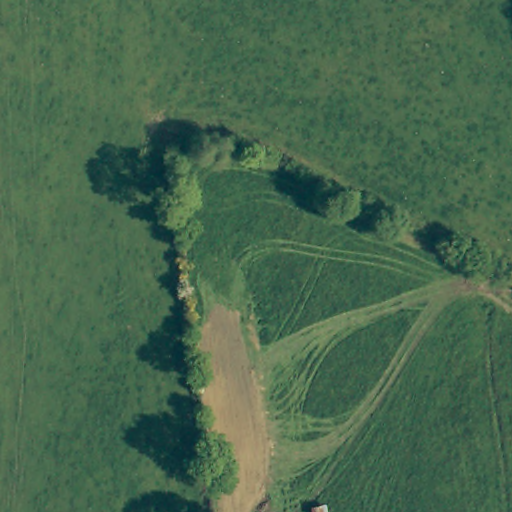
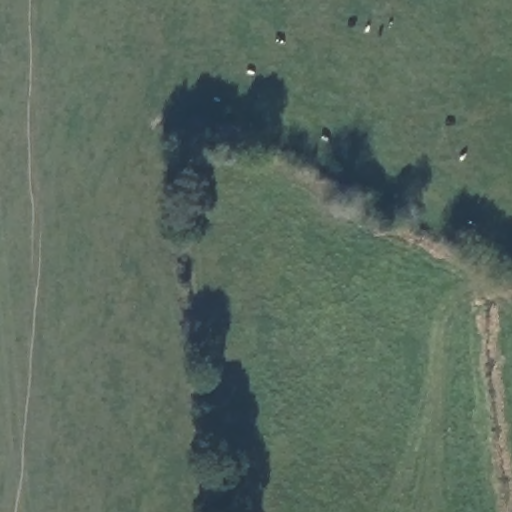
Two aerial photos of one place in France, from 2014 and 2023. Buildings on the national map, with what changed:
[]

